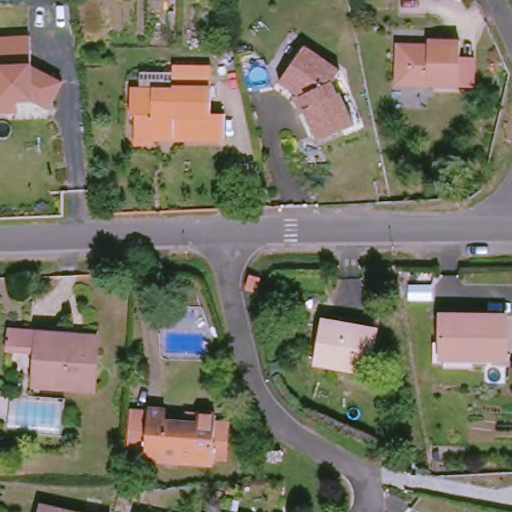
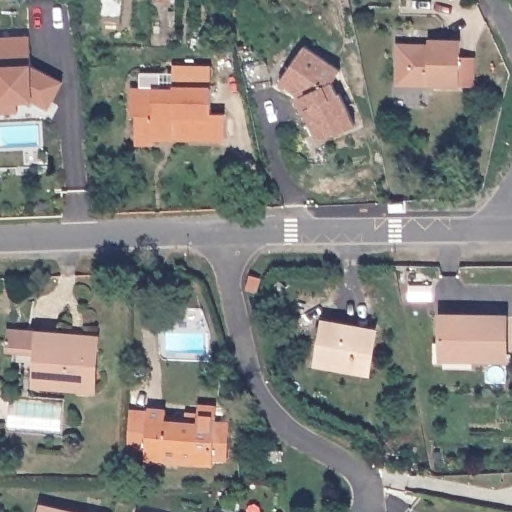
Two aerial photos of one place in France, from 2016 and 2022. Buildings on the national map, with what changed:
unchanged [(0,114),(0,38),(31,37),(32,66),(63,83),(49,110),(34,102),(18,102),(19,113),(0,114)]
unchanged [(475,86),(460,85),(460,87),(397,85),(398,44),(419,45),(422,49),(429,49),(430,40),(461,40),(461,57),(476,57),(475,86)]
unchanged [(301,104),(305,101),(286,87),(311,51),(347,75),(339,88),(344,100),(346,99),(361,130),(324,147),(310,116),(307,117),(301,104)]
unchanged [(154,139),(154,143),(136,143),(136,116),(131,115),(132,90),(141,91),(141,75),(174,75),(174,68),(213,68),(212,89),(212,114),(226,114),(225,140),(175,140),(168,139),(154,139)]
unchanged [(262,277),(258,292),(248,290),(253,275),(262,277)]
unchanged [(508,316),(507,359),(441,358),(442,315),(508,316)]
unchanged [(376,330),(369,373),(318,363),(325,321),(376,330)]
unchanged [(74,340),(99,341),(98,350),(95,396),(35,392),(37,353),(7,351),(9,335),(39,336),(56,338),(74,340)]
unchanged [(219,452),(219,459),(151,453),(152,443),(135,442),(137,409),(154,410),(154,405),(172,406),(171,417),(191,418),(192,408),(204,409),(222,410),(222,418),(234,419),(232,453),(219,452)]
unchanged [(282,451),(282,460),(278,461),(278,462),(272,462),(272,461),(267,461),(267,452),(282,451)]
unchanged [(74,512),(39,512),(41,505),(74,512)]

